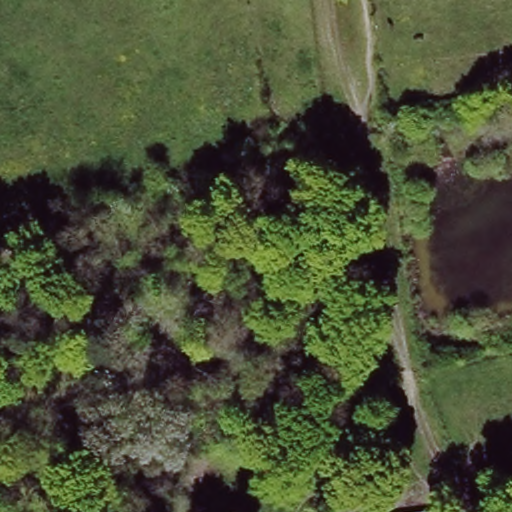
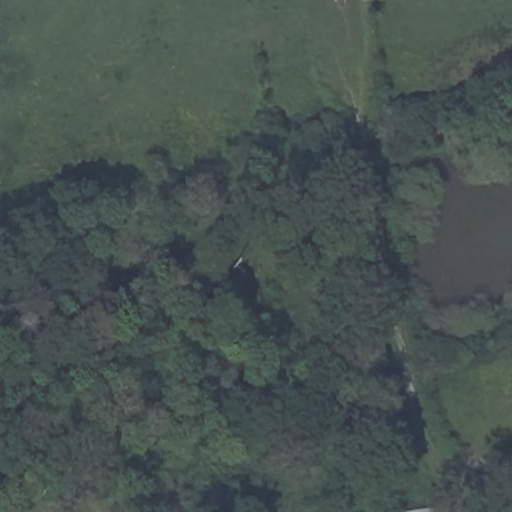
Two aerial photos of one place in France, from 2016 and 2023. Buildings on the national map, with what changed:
unchanged [(403,501),(404,512),(387,512),(387,502),(403,501)]
unchanged [(440,512),(427,512),(440,510),(440,512)]

